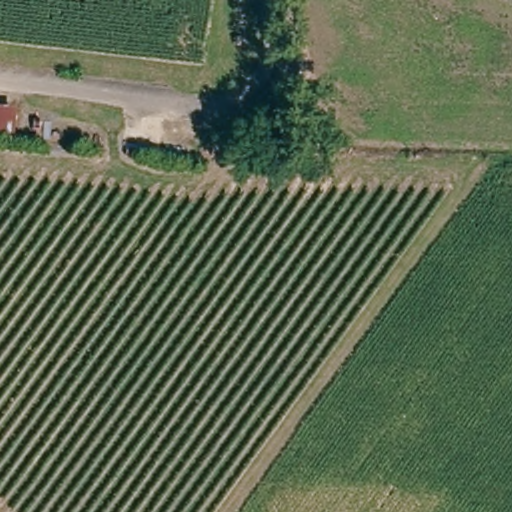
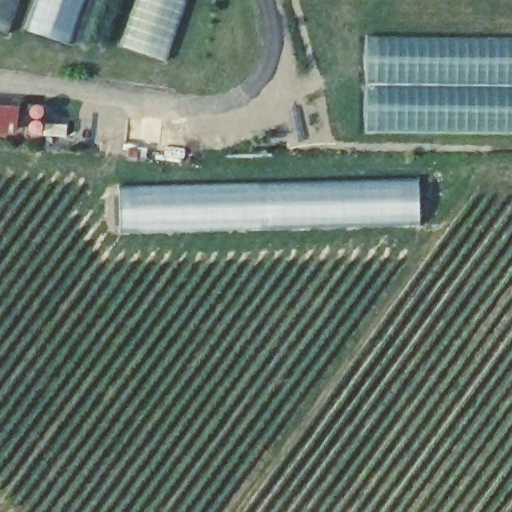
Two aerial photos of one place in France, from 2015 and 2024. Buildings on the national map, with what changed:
new [(76,33),(75,37),(72,46),(12,25),(9,31),(0,28),(0,0),(186,0),(165,61),(76,33)]
new [(366,37),(512,39),(512,133),(364,132),(366,37)]
new [(419,180),(419,225),(119,232),(119,187),(419,180)]

